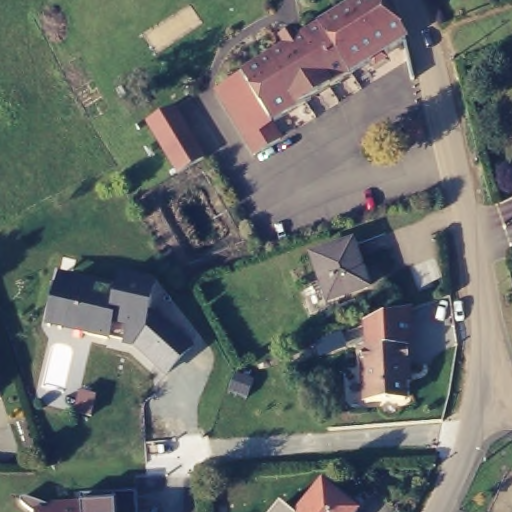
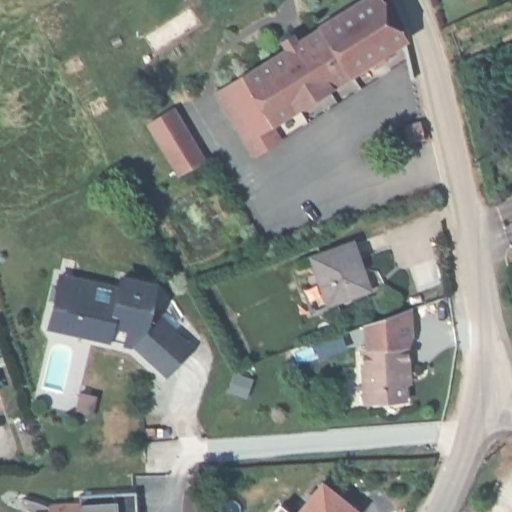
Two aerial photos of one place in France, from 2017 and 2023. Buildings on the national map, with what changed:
unchanged [(278,42),(294,32),(299,40),(371,0),(379,0),(407,41),(275,121),(286,139),(257,157),(215,91),(281,49),(278,42)]
unchanged [(147,123),(173,107),(204,160),(178,177),(147,123)]
unchanged [(351,242),(369,288),(329,302),(312,257),(351,242)]
unchanged [(133,349),(123,347),(123,345),(44,329),(58,273),(118,286),(121,272),(157,280),(152,312),(194,347),(166,379),(133,349)]
unchanged [(412,351),(412,371),(408,371),(409,403),(369,406),(364,353),(412,351)]
unchanged [(314,361),(295,367),(292,359),(313,353),(314,361)]
unchanged [(323,480),(326,482),(302,512),(295,512),(323,480)]
unchanged [(326,482),(361,511),(360,512),(302,512),(326,482)]
unchanged [(33,502),(45,507),(76,505),(76,495),(131,491),(133,512),(28,512),(23,509),(17,503),(17,502),(16,502),(16,501),(17,500),(18,500),(18,499),(18,498),(19,498),(20,498),(33,502)]
unchanged [(281,505),(289,512),(275,512),(281,505)]

